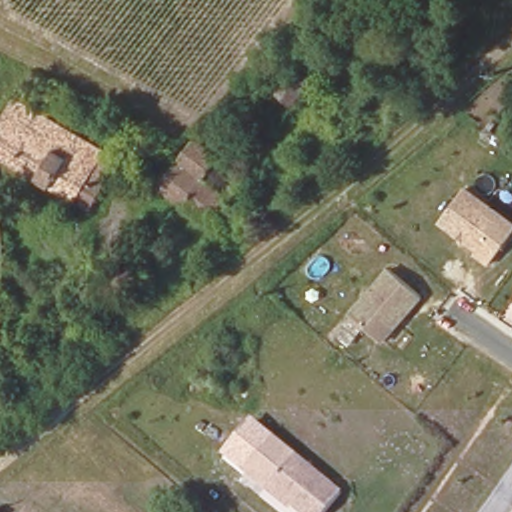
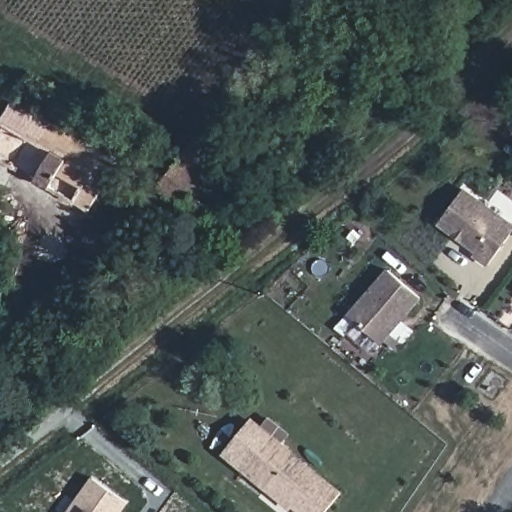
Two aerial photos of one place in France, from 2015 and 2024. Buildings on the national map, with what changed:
unchanged [(310,85),(290,111),(269,96),(289,70),(310,85)]
unchanged [(85,151),(81,159),(102,174),(89,193),(104,206),(89,225),(0,161),(0,120),(13,99),(85,151)]
unchanged [(152,201),(173,173),(176,168),(184,157),(208,174),(175,218),(152,201)]
unchanged [(237,211),(243,215),(224,238),(217,235),(209,246),(175,218),(208,174),(244,200),(237,211)]
unchanged [(486,264),(471,252),(474,249),(436,221),(463,188),(512,226),(512,229),(486,264)]
unchanged [(384,341),(351,314),(389,268),(422,293),(384,341)]
unchanged [(291,508),(223,451),(251,416),(293,451),(269,480),(296,503),(291,508)]
unchanged [(306,512),(269,480),(293,451),(340,492),(324,512),(306,512)]
new [(129,502),(122,512),(66,512),(90,475),(129,502)]

